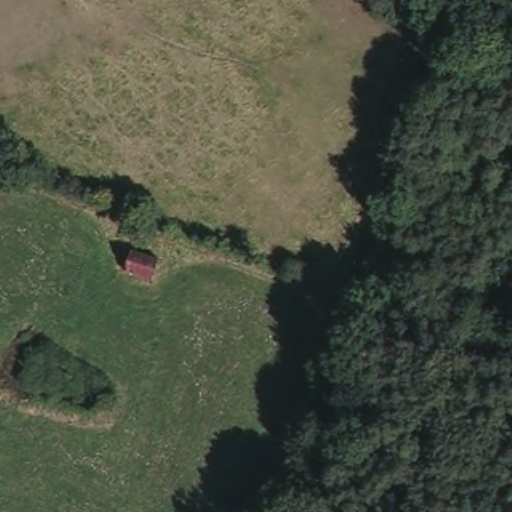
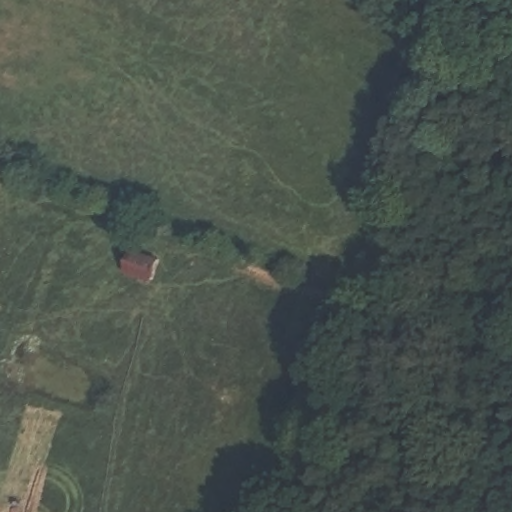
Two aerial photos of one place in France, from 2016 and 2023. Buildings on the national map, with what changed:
unchanged [(162,262),(155,286),(115,275),(123,250),(162,262)]

